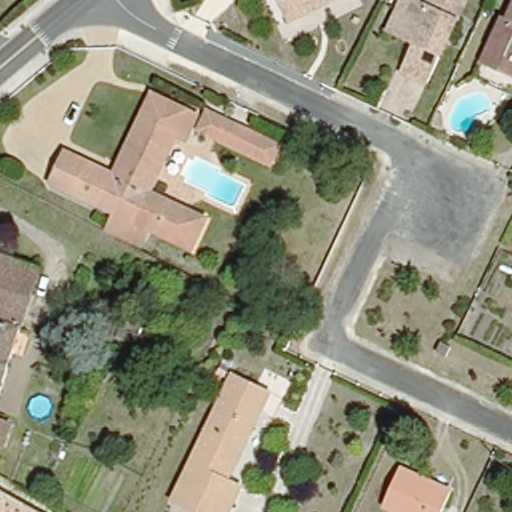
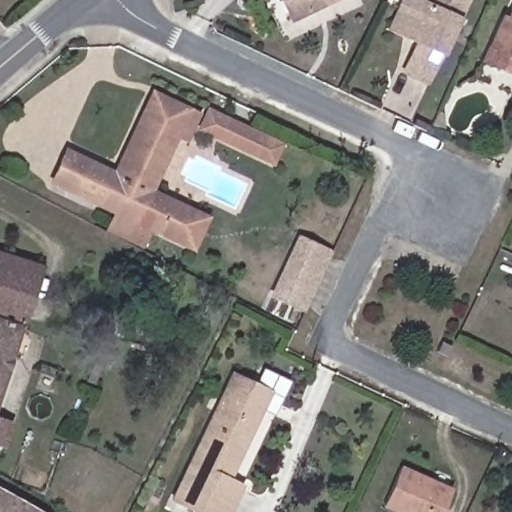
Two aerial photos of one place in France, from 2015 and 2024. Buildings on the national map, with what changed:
unchanged [(292,16),(284,0),(323,0),(292,16)]
unchanged [(451,18),(445,15),(436,34),(442,37),(421,81),(397,69),(410,41),(388,30),(403,0),(413,0),(424,5),(427,0),(460,0),(451,18)]
unchanged [(481,52),(501,6),(507,9),(511,0),(512,0),(512,68),(497,60),(481,52)]
unchanged [(66,188),(49,180),(64,149),(81,156),(114,171),(149,99),(192,119),(185,135),(173,137),(148,190),(158,194),(209,219),(195,248),(157,230),(151,227),(142,248),(105,231),(115,211),(66,188)]
unchanged [(267,162),(205,136),(196,131),(202,116),(212,121),(272,149),(267,162)]
new [(305,312),(268,297),(296,235),(334,250),(305,312)]
unchanged [(39,262),(5,367),(0,385),(0,249),(39,262)]
unchanged [(255,404),(219,478),(233,485),(220,512),(192,512),(166,499),(231,373),(252,383),(244,399),(255,404)]
unchanged [(19,420),(10,445),(0,442),(0,414),(19,420)]
unchanged [(405,512),(381,500),(398,464),(448,487),(437,512),(405,512)]
unchanged [(43,512),(0,512),(0,489),(43,512)]

